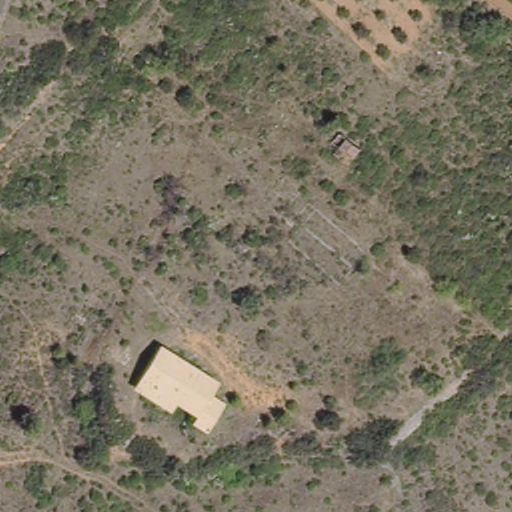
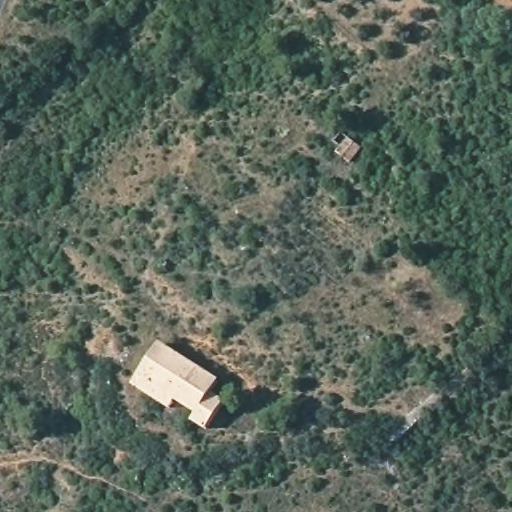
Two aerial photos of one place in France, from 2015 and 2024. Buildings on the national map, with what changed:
unchanged [(208,387),(230,399),(207,432),(127,383),(154,342),(217,374),(208,387)]

